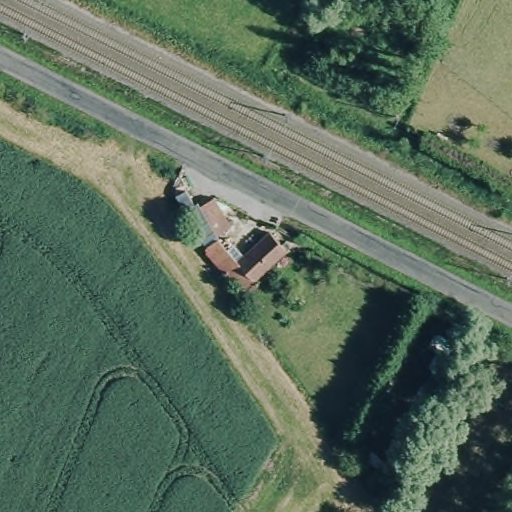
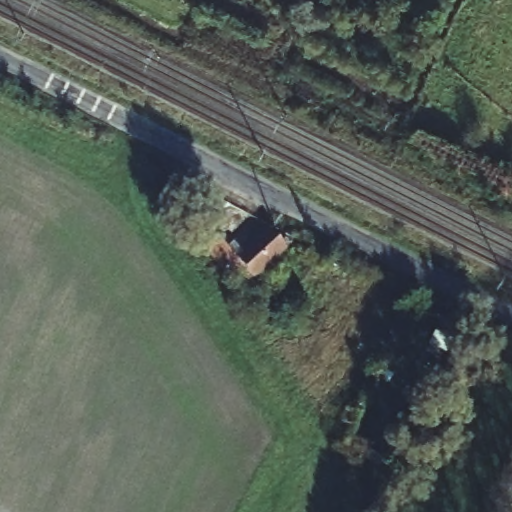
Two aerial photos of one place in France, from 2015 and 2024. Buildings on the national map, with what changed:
unchanged [(242,258),(268,235),(278,246),(283,242),(288,248),(233,295),(202,251),(171,199),(180,193),(188,207),(192,206),(197,213),(210,206),(225,229),(212,239),(223,251),(230,246),(242,258)]

